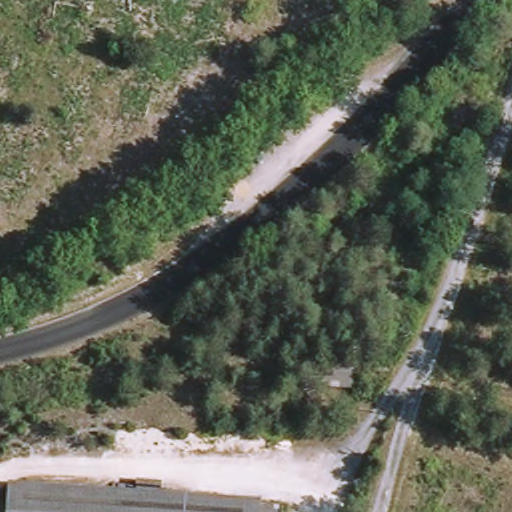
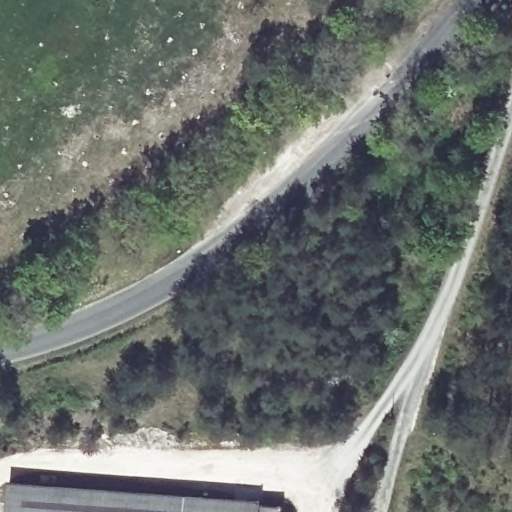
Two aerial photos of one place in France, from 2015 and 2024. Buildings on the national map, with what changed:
unchanged [(272,498),(272,506),(293,507),(293,512),(20,512),(22,483),(272,498)]

